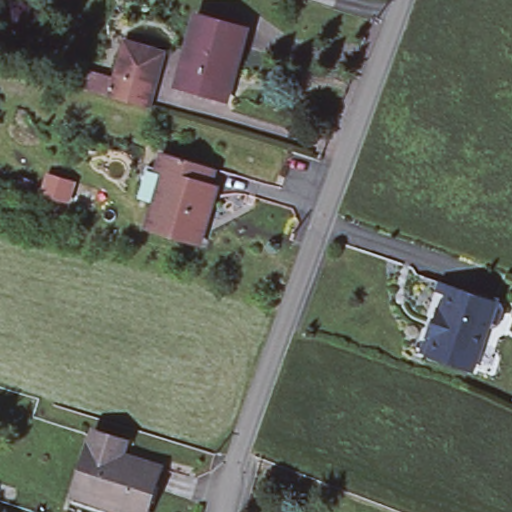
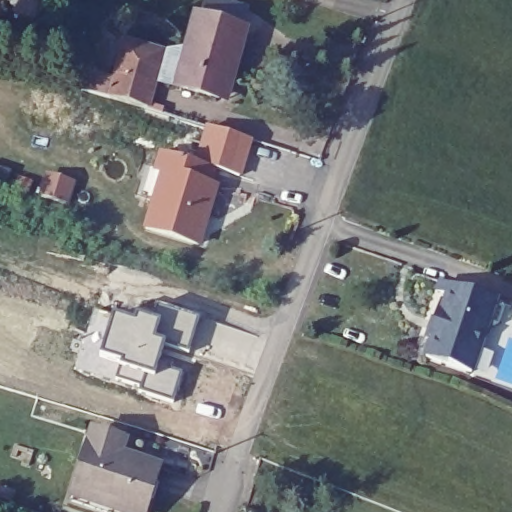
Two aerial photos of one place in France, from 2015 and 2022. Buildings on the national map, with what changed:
unchanged [(220,97),(177,85),(196,15),(246,29),(236,66),(227,99),(220,97)]
unchanged [(168,52),(159,83),(121,72),(131,40),(168,52)]
unchanged [(159,83),(151,108),(135,103),(114,97),(88,89),(93,73),(119,80),(121,72),(159,83)]
new [(206,126),(253,139),(241,175),(219,169),(196,160),(206,126)]
unchanged [(168,171),(162,169),(167,153),(219,169),(214,186),(221,188),(216,204),(163,188),(168,171)]
new [(74,181),(70,205),(40,196),(45,173),(74,181)]
unchanged [(204,243),(151,227),(159,199),(163,188),(216,204),(212,216),(206,235),(204,243)]
unchanged [(446,302),(448,295),(439,292),(442,282),(496,300),(489,320),(441,304),(442,301),(446,302)]
new [(114,315),(134,322),(137,315),(152,320),(156,304),(199,318),(189,353),(164,344),(159,360),(173,364),(170,370),(182,373),(173,402),(139,391),(142,386),(117,378),(79,367),(96,312),(114,315)]
unchanged [(489,320),(472,371),(430,357),(437,339),(429,336),(441,304),(489,320)]
unchanged [(120,456),(159,468),(144,512),(124,512),(119,510),(122,503),(75,488),(93,432),(125,442),(120,456)]
demolished [(19,479),(10,504),(0,501),(0,474),(19,479)]

